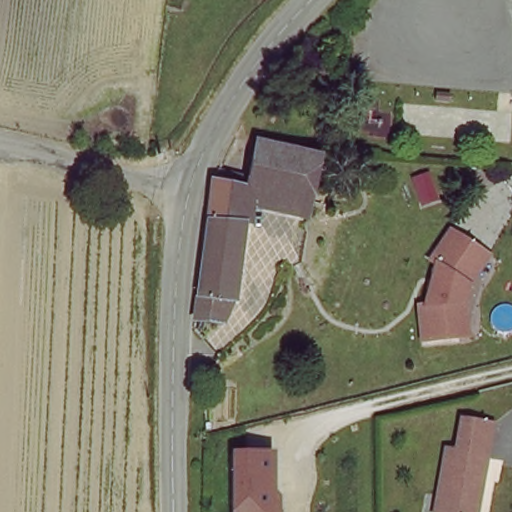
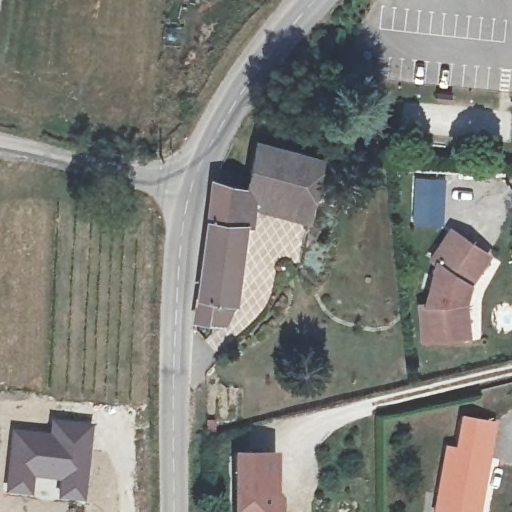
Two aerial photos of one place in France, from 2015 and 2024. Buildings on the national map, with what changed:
unchanged [(256,140),(318,150),(310,195),(246,184),(256,140)]
unchanged [(243,202),(241,214),(208,208),(213,178),(246,184),(243,202)]
unchanged [(246,184),(310,195),(307,213),(243,202),(246,184)]
unchanged [(224,320),(193,317),(193,305),(201,252),(208,208),(241,214),(224,320)]
unchanged [(461,335),(423,338),(419,303),(426,302),(435,261),(429,257),(448,228),(480,248),(487,253),(468,281),(464,299),(469,334),(461,335)]
new [(11,427),(48,431),(50,417),(94,423),(83,500),(56,499),(56,481),(35,478),(33,496),(5,493),(11,427)]
unchanged [(448,451),(459,453),(463,421),(497,426),(484,499),(482,512),(439,512),(448,451)]
unchanged [(275,512),(232,512),(231,450),(269,449),(270,478),(264,485),(260,483),(261,490),(275,493),(275,512)]

